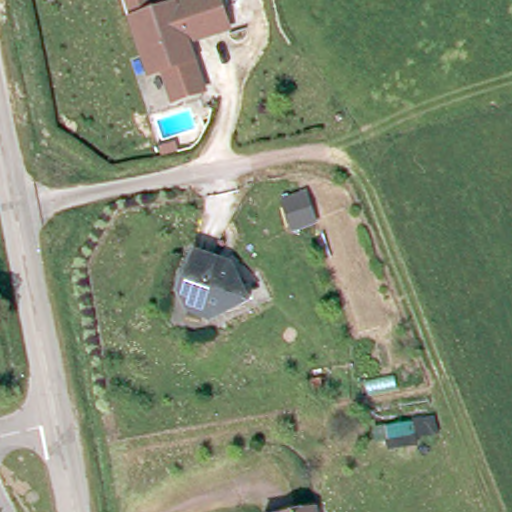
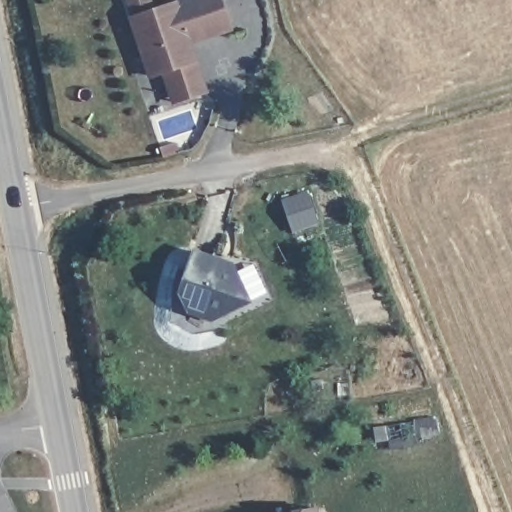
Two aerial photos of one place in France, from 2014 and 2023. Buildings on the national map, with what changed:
unchanged [(171,86),(166,71),(152,75),(132,18),(135,17),(129,0),(150,0),(153,11),(186,0),(221,0),(230,28),(190,41),(201,76),(206,91),(176,101),(171,86)]
unchanged [(318,220),(297,228),(287,200),(308,193),(318,220)]
unchanged [(210,256),(213,263),(223,267),(230,263),(248,300),(243,302),(211,318),(203,301),(199,304),(188,308),(178,293),(192,252),(192,251),(210,256)]
unchanged [(296,511),(316,506),(318,512),(289,512),(296,511)]

